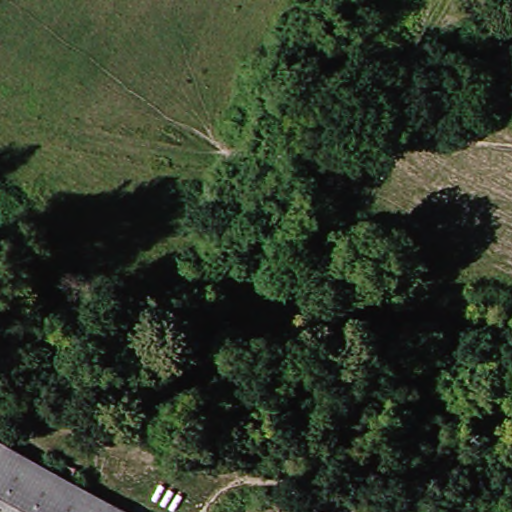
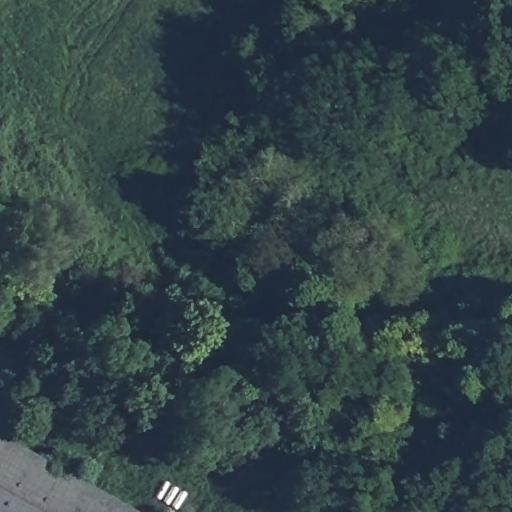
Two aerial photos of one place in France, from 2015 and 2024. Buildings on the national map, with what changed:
unchanged [(142,512),(0,512),(0,433),(142,512)]

